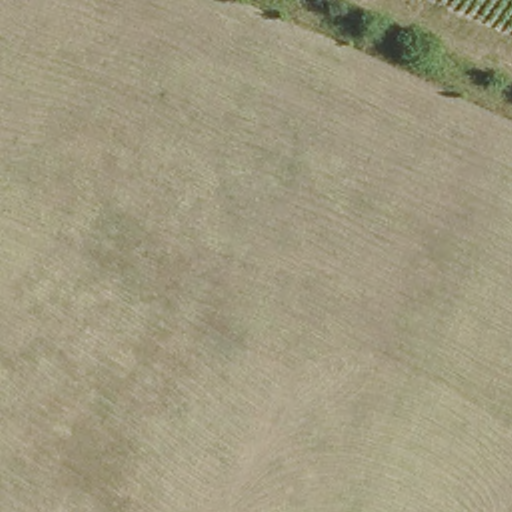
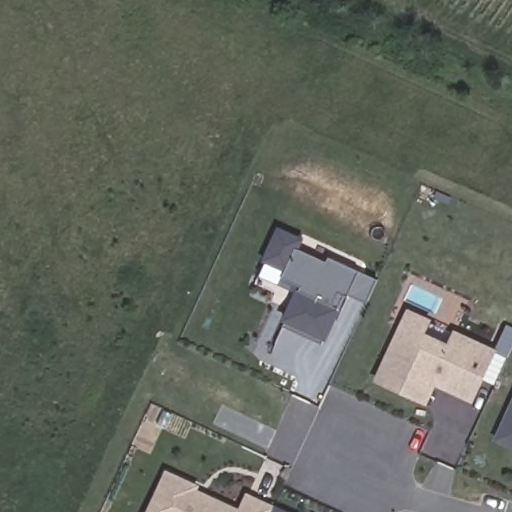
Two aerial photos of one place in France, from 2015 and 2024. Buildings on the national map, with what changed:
new [(302,240),(300,251),(324,262),(328,259),(377,280),(367,303),(345,295),(324,347),(281,327),(295,294),(278,286),(285,273),(264,262),(277,229),(302,240)]
new [(432,320),(426,334),(447,344),(452,331),(497,352),(472,406),(434,389),(427,407),(373,383),(407,310),(432,320)]
new [(497,443),(512,406),(512,450),(497,443)]
new [(167,472),(201,486),(200,492),(240,510),(247,495),(284,512),(149,512),(167,472)]

